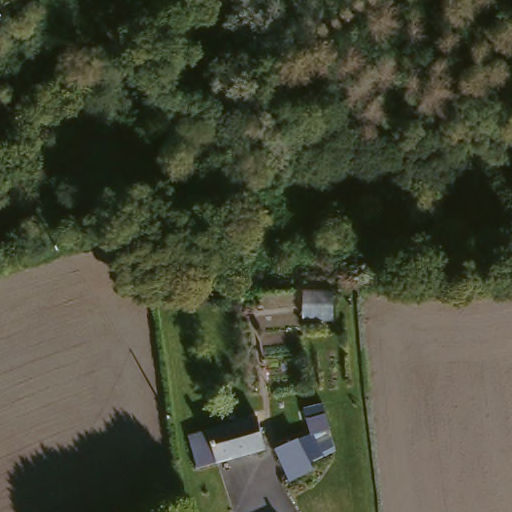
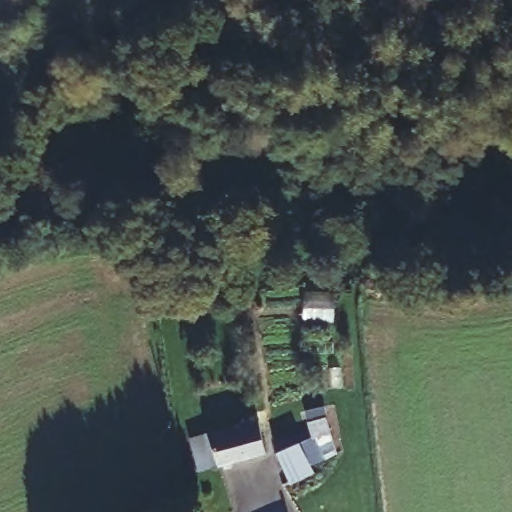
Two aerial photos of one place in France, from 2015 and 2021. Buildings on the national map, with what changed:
unchanged [(336,439),(318,444),(325,466),(309,470),(314,481),(291,488),(276,454),(309,440),(301,414),(329,414),(336,439)]
unchanged [(258,422),(266,454),(198,471),(190,440),(258,422)]

